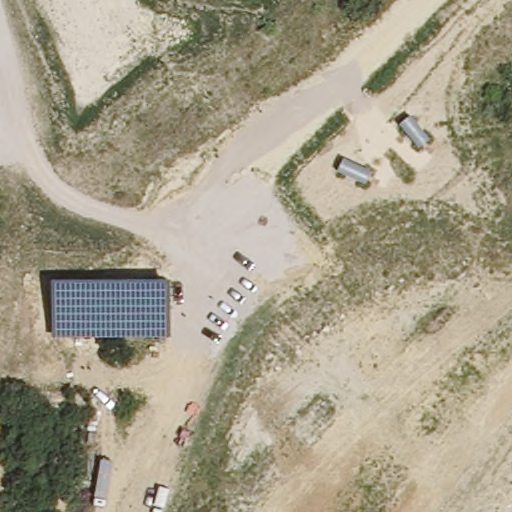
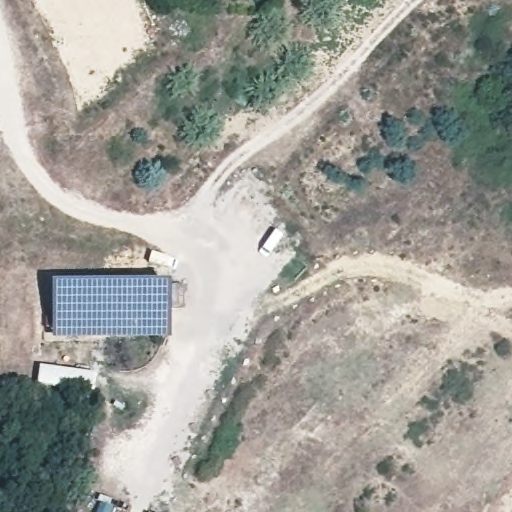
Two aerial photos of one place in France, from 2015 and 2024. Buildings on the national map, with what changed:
unchanged [(54,282),(172,283),(171,337),(54,337),(54,282)]

